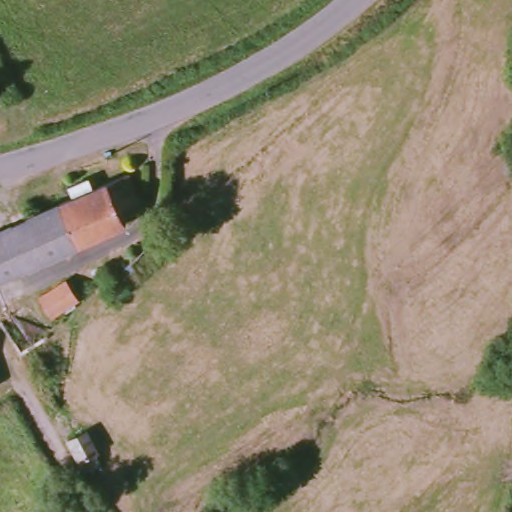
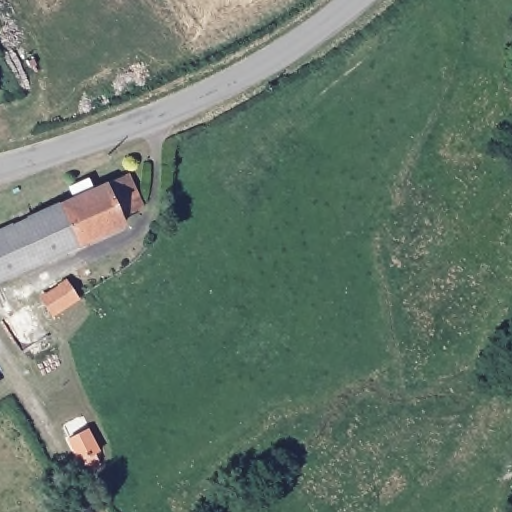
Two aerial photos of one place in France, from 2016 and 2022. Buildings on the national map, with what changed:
unchanged [(0,282),(0,234),(83,197),(79,187),(98,179),(103,189),(115,184),(135,174),(150,206),(130,215),(133,224),(0,282)]
unchanged [(49,297),(76,280),(88,298),(61,315),(49,297)]
unchanged [(86,429),(98,451),(94,453),(97,458),(97,460),(97,463),(96,465),(95,467),(93,469),(90,470),(87,470),(85,470),(83,470),(67,439),(86,429)]

